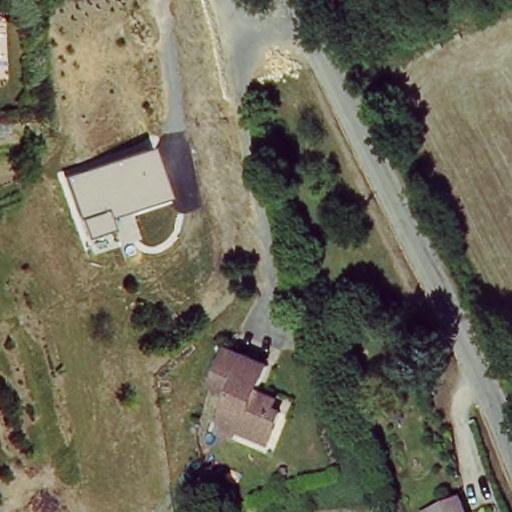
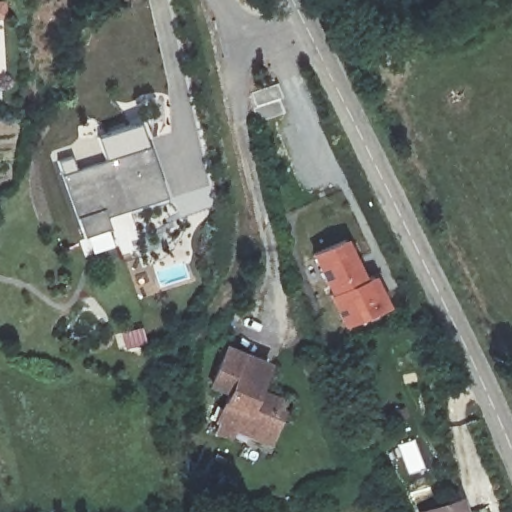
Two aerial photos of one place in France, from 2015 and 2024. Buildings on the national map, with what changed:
unchanged [(166,196),(108,216),(112,228),(85,237),(63,175),(149,145),(166,196)]
new [(365,279),(374,274),(389,306),(343,327),(329,296),(332,295),(312,254),(345,238),(365,279)]
unchanged [(209,441),(215,427),(227,399),(209,393),(225,354),(267,371),(259,391),(276,397),(270,414),(280,418),(269,448),(237,435),(231,450),(209,441)]
unchanged [(461,512),(432,512),(458,503),(461,512)]

